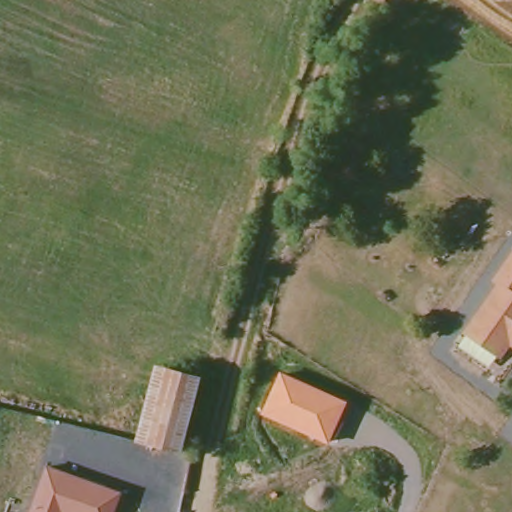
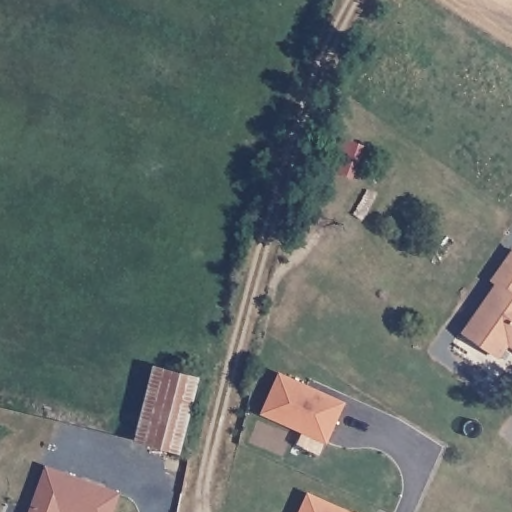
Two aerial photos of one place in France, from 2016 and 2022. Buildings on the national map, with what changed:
unchanged [(512,337),(501,352),(468,326),(501,278),(497,275),(512,254),(512,337)]
unchanged [(164,365),(200,375),(182,450),(146,441),(164,365)]
unchanged [(279,372),(348,400),(329,444),(261,414),(279,372)]
unchanged [(123,493),(115,512),(33,512),(50,466),(123,493)]
new [(354,512),(300,512),(310,491),(354,512)]

